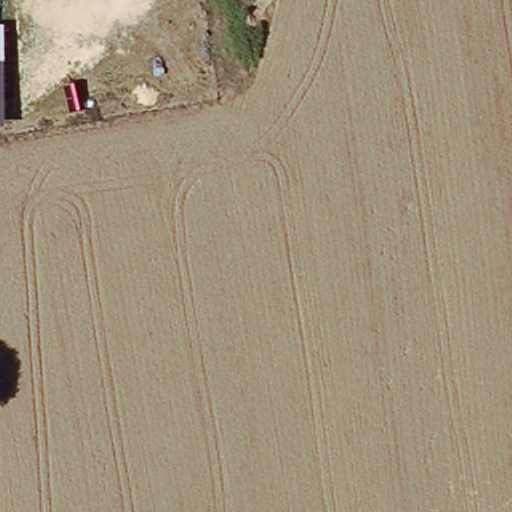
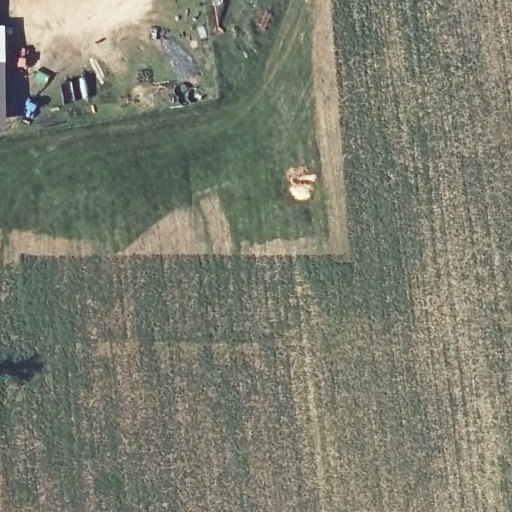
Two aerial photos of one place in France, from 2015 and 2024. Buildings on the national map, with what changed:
unchanged [(3,127),(0,127),(0,28),(2,27),(3,127)]

